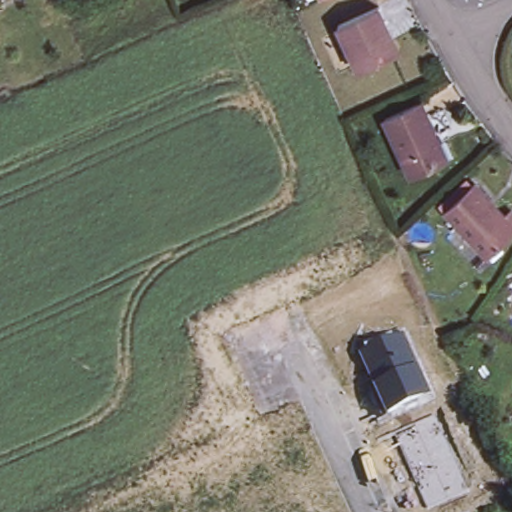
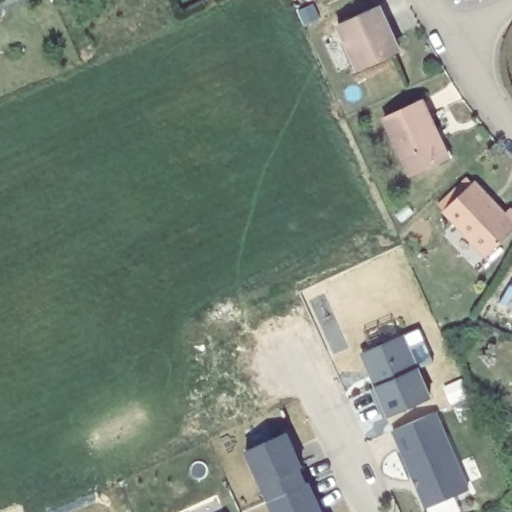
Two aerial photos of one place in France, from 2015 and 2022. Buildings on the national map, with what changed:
unchanged [(378,7),(387,25),(382,27),(394,55),(359,71),(338,26),(378,7)]
unchanged [(422,101),(449,157),(412,175),(385,118),(422,101)]
unchanged [(505,215),(511,211),(512,213),(512,232),(487,256),(444,211),(474,183),(505,215)]
unchanged [(389,419),(361,354),(402,335),(432,395),(389,419)]
unchanged [(428,511),(394,438),(443,417),(474,490),(428,511)]
new [(246,454),(286,435),(294,453),(301,468),(298,470),(306,486),(309,485),(316,501),(321,512),(272,512),(246,454)]

